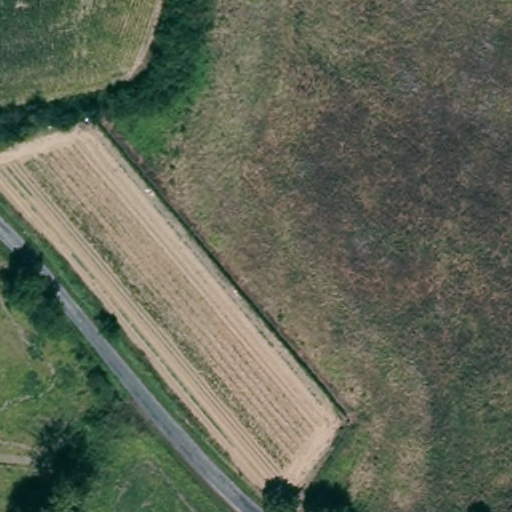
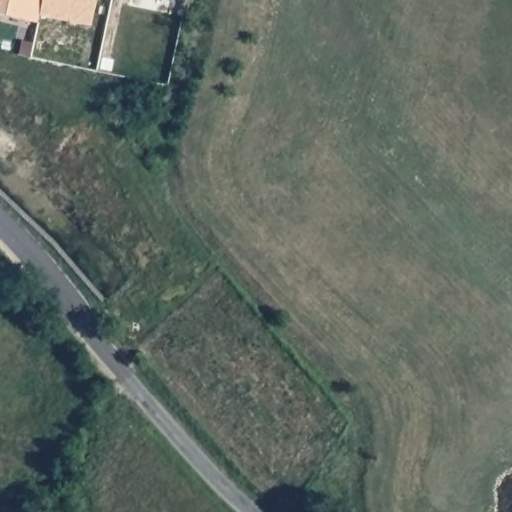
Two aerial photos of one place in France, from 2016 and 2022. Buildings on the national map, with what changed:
new [(40,15),(38,22),(0,14),(0,4),(1,0),(43,0),(40,15)]
new [(43,0),(96,0),(90,25),(40,15),(43,0)]

